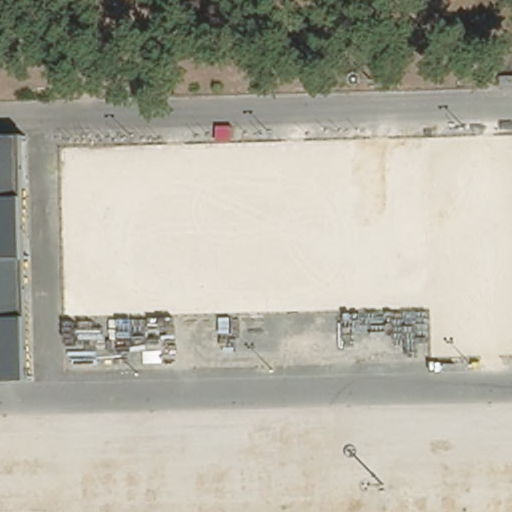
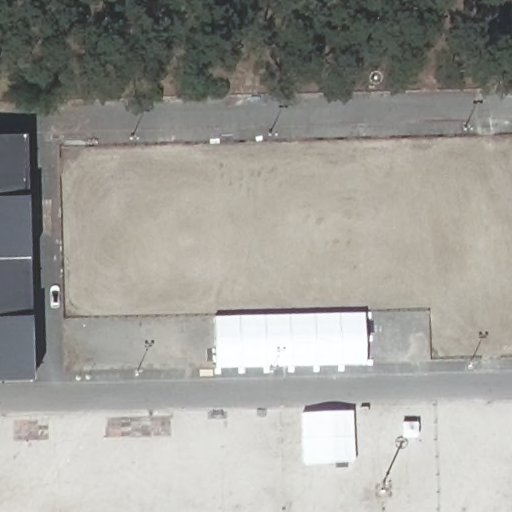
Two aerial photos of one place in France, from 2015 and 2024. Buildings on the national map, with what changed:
unchanged [(34,383),(0,384),(0,139),(29,139),(34,383)]
new [(214,316),(364,313),(367,364),(216,369),(214,316)]
new [(302,413),(353,410),(354,460),(305,462),(302,413)]

